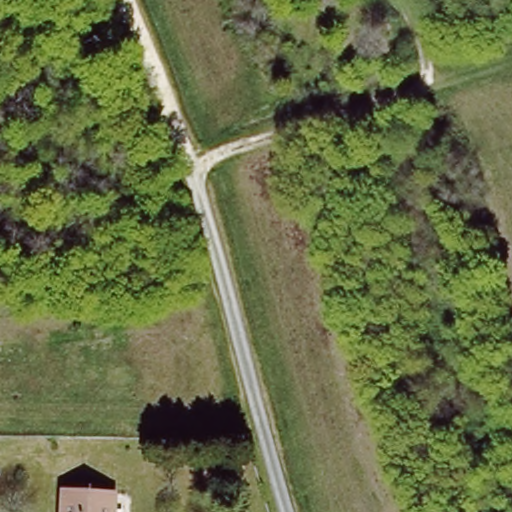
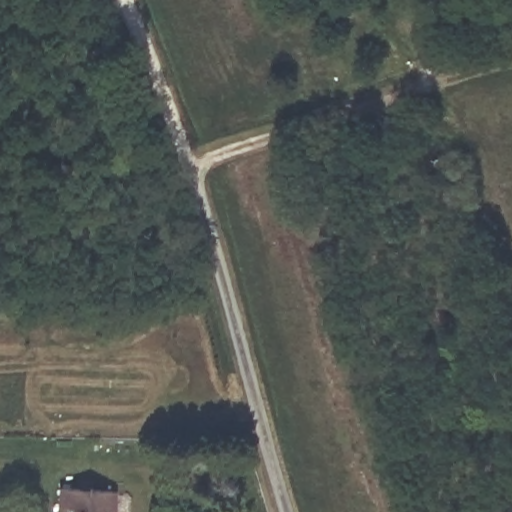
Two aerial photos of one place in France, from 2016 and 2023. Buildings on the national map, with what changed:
unchanged [(107,495),(106,512),(55,512),(56,492),(107,495)]

